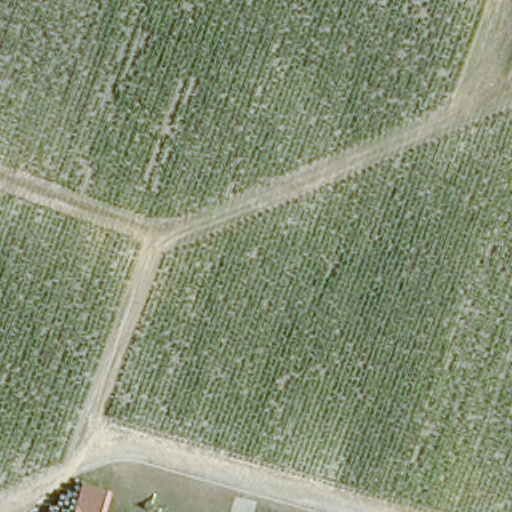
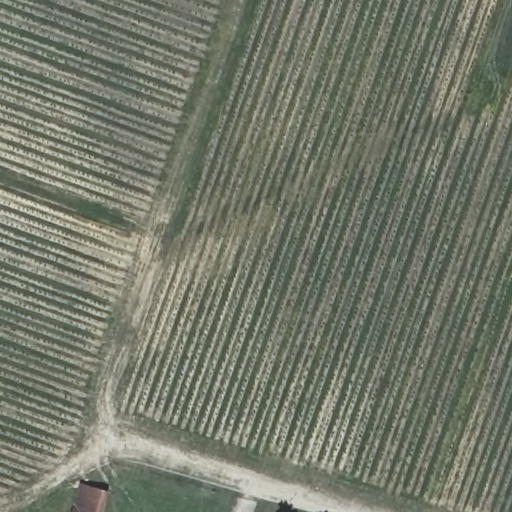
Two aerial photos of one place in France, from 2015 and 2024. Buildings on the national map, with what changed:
unchanged [(98,487),(91,512),(71,512),(80,483),(80,482),(98,487)]

